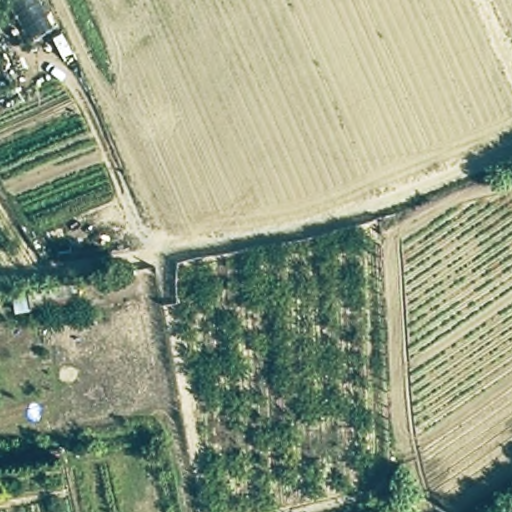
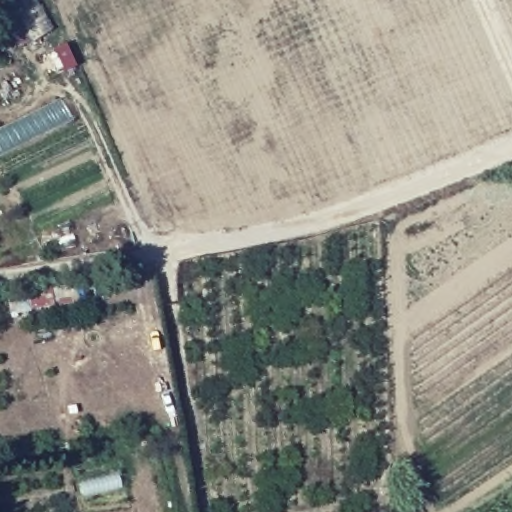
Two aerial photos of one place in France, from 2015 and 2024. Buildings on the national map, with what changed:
unchanged [(52,295),(53,310),(34,313),(31,295),(52,295)]

